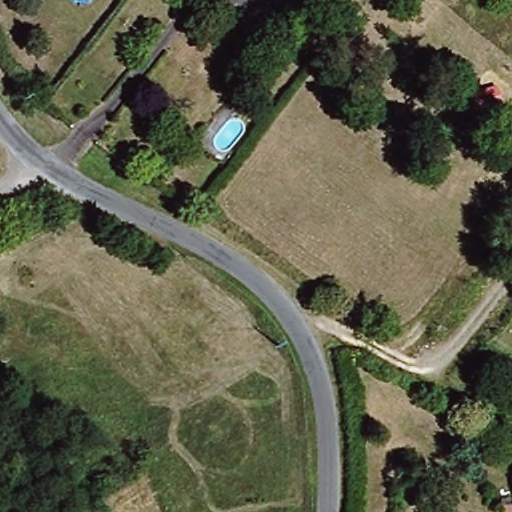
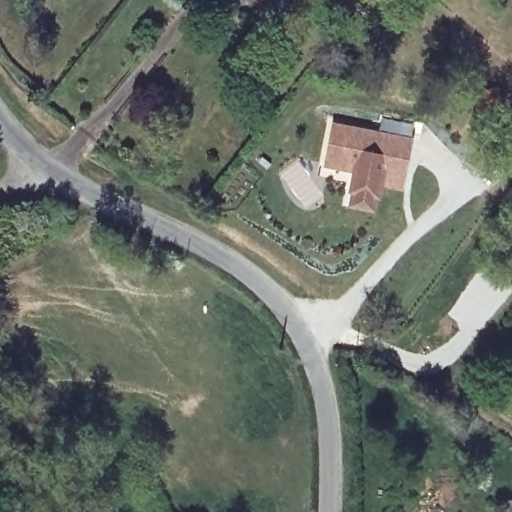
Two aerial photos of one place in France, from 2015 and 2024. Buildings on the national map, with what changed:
new [(355,190),(358,167),(328,161),(335,122),(387,131),(415,136),(410,167),(407,182),(385,178),(382,195),(380,195),(378,207),(354,204),(357,190),(355,190)]
unchanged [(500,508),(512,504),(512,512),(502,512),(500,508)]

